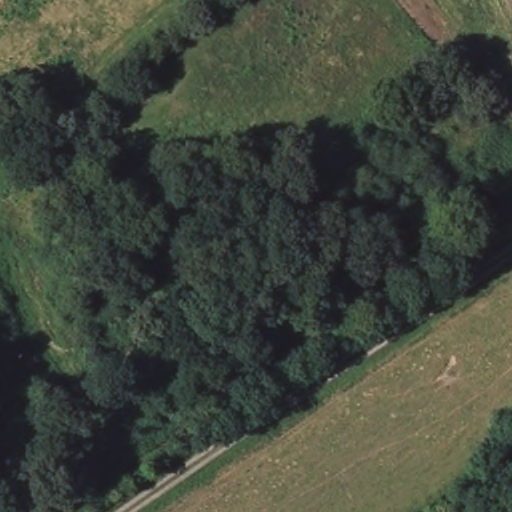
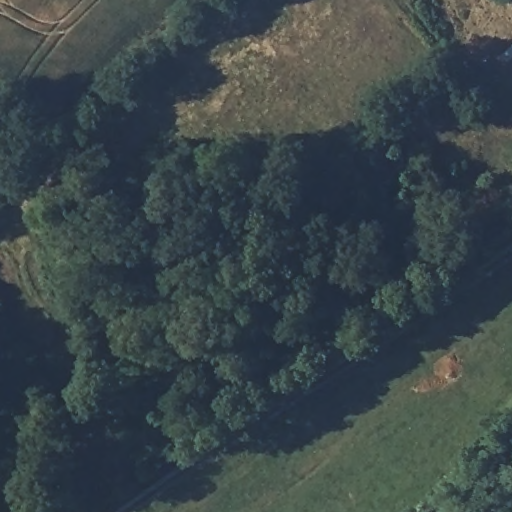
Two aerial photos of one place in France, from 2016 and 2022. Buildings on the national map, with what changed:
[]

